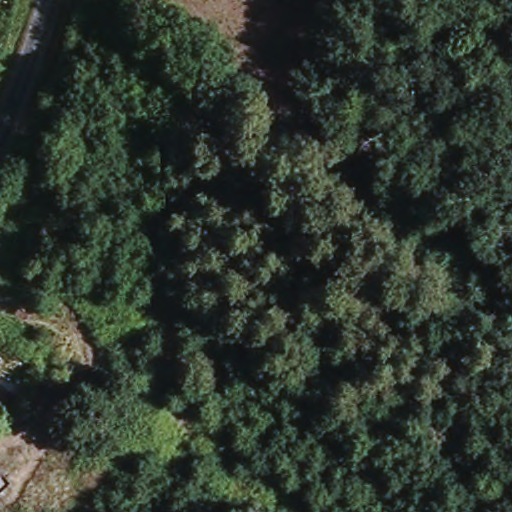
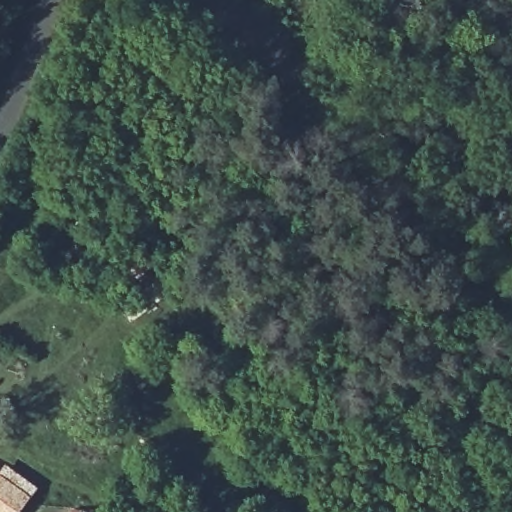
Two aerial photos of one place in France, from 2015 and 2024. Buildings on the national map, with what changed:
demolished [(0,508),(0,470),(19,484),(0,508)]
new [(31,497),(20,512),(0,512),(0,474),(31,497)]

